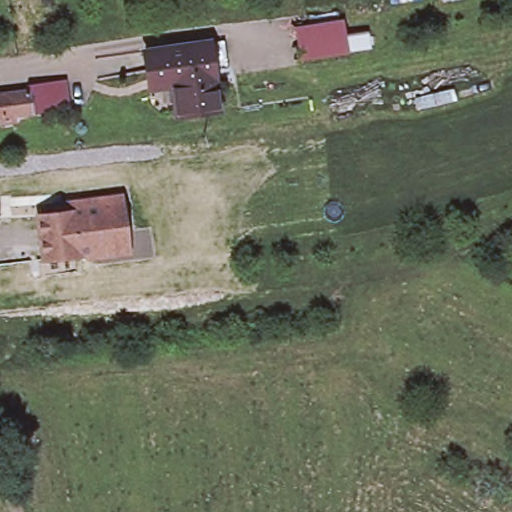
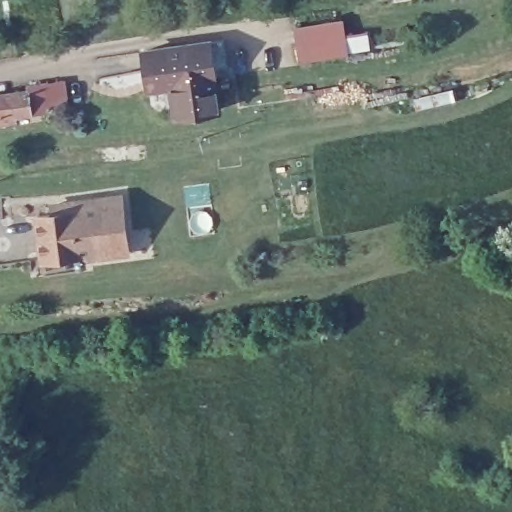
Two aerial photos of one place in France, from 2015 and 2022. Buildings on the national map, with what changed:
unchanged [(341,21),(346,51),(300,58),(296,28),(341,21)]
unchanged [(144,56),(208,47),(217,114),(175,120),(170,91),(149,94),(144,56)]
unchanged [(17,96),(16,90),(54,84),(70,82),(74,109),(58,112),(5,120),(6,125),(0,126),(0,99),(17,96)]
unchanged [(130,253),(61,262),(40,262),(35,213),(52,213),(51,200),(123,193),(130,253)]

